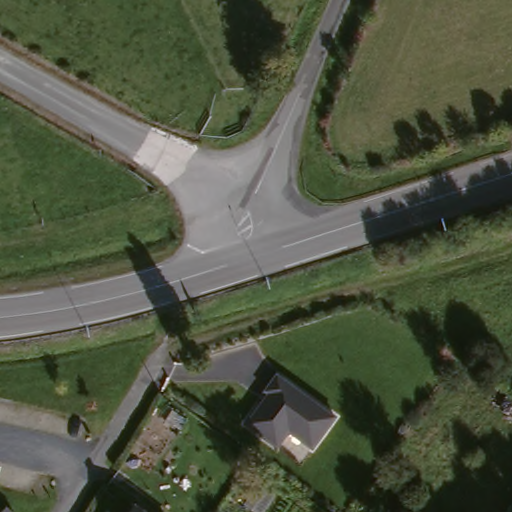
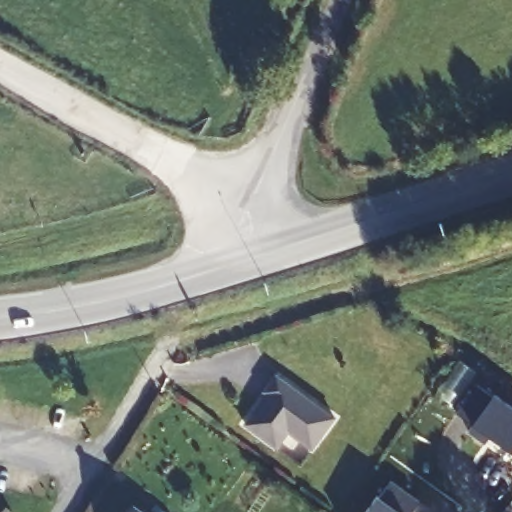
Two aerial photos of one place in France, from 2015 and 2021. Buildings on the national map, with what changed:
unchanged [(342,416),(320,452),(294,432),(287,445),(252,422),(285,373),(342,416)]
new [(494,396),(496,394),(512,405),(512,451),(491,436),(487,443),(470,430),(474,425),(458,413),(478,385),(494,396)]
new [(378,495),(379,497),(391,480),(419,500),(411,512),(366,512),(378,495)]
unchanged [(134,507),(141,512),(130,512),(134,507)]

